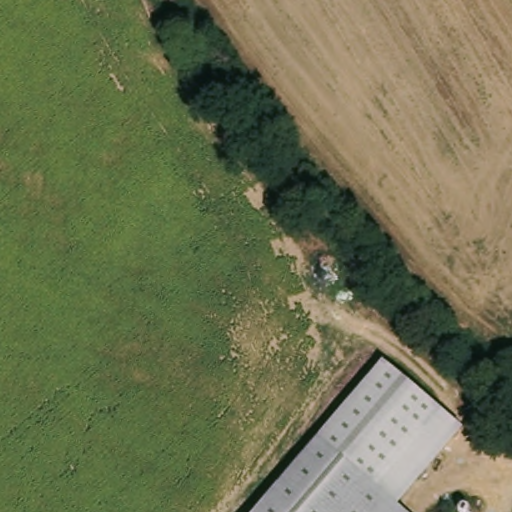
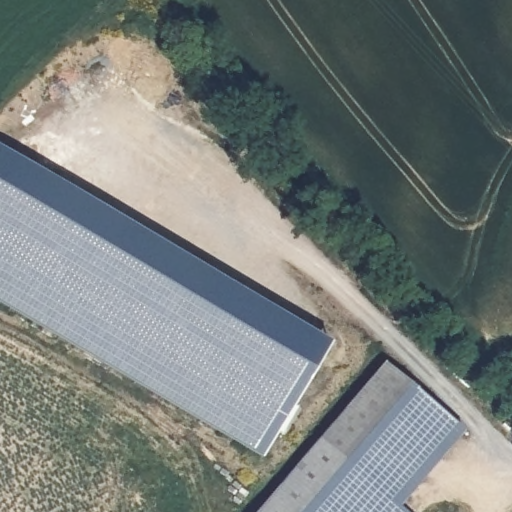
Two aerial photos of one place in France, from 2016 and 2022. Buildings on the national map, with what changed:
new [(0,303),(0,146),(296,322),(303,313),(325,327),(319,336),(328,341),(260,457),(0,303)]
unchanged [(395,505),(320,438),(383,362),(463,429),(400,510),(395,505)]
unchanged [(395,505),(389,512),(255,512),(320,438),(395,505)]
unchanged [(389,512),(395,505),(402,512),(389,512)]

